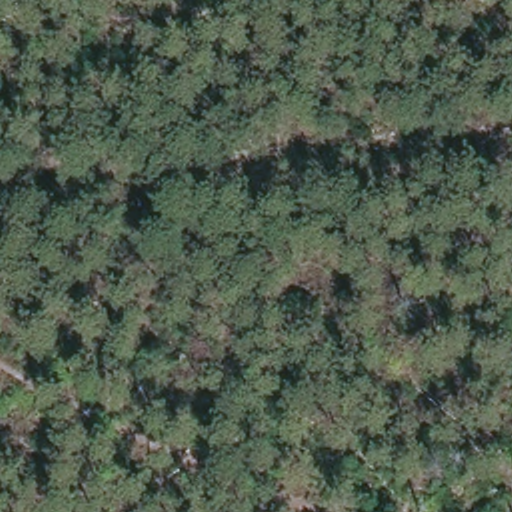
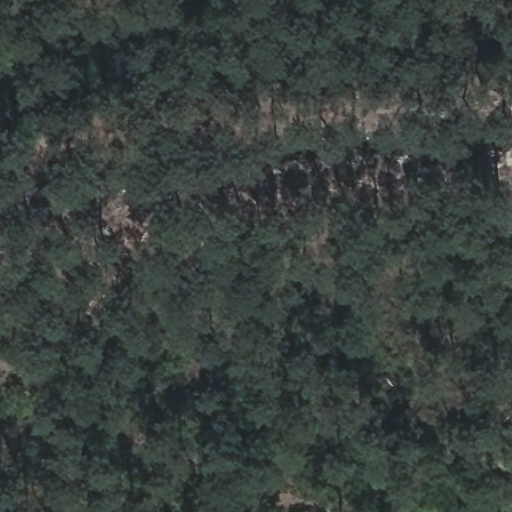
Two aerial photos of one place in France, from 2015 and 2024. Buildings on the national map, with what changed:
[]

